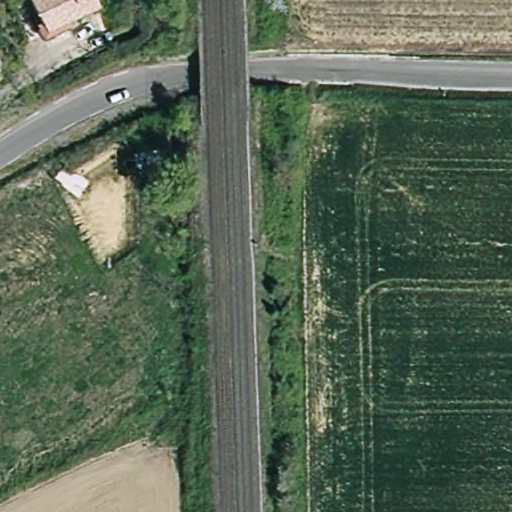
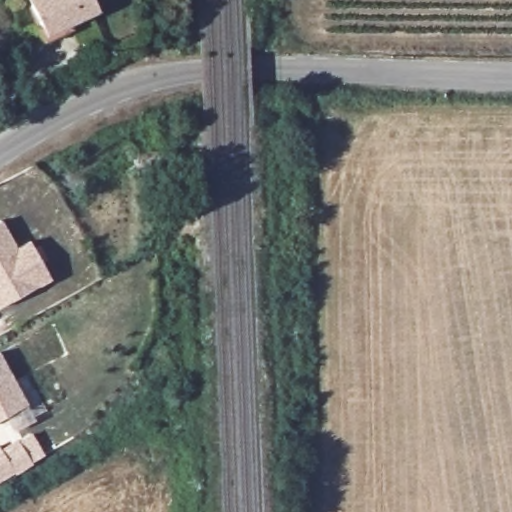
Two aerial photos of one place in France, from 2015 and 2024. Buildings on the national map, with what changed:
unchanged [(95,0),(100,11),(46,34),(29,0),(95,0)]
unchanged [(0,76),(0,34),(22,24),(37,60),(0,76)]
new [(5,302),(0,293),(0,220),(21,209),(57,275),(5,302)]
new [(0,420),(0,354),(28,404),(0,420)]
new [(20,442),(35,464),(0,479),(0,447),(4,453),(20,442)]

